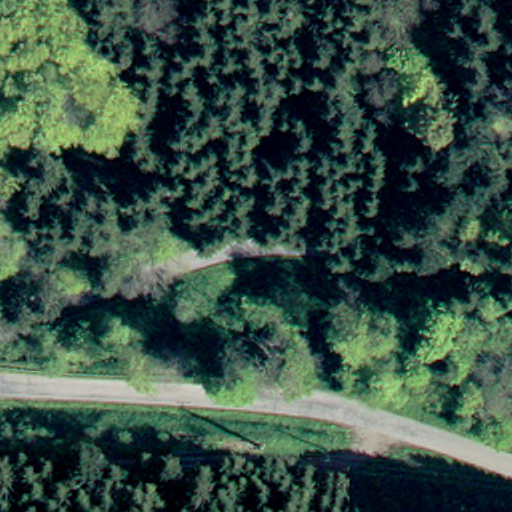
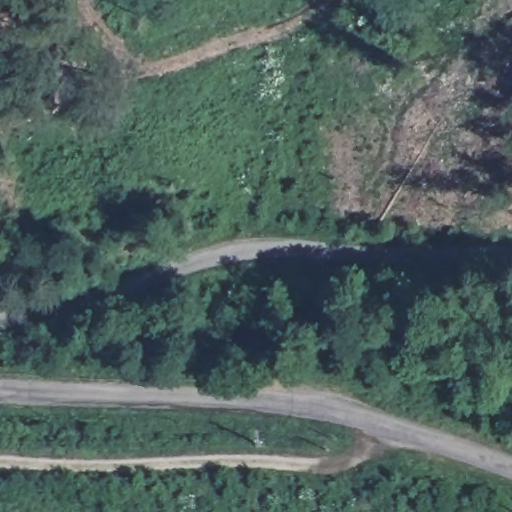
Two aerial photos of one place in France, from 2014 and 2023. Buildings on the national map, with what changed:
unchanged [(320,447),(310,447),(310,438),(320,438),(320,447)]

